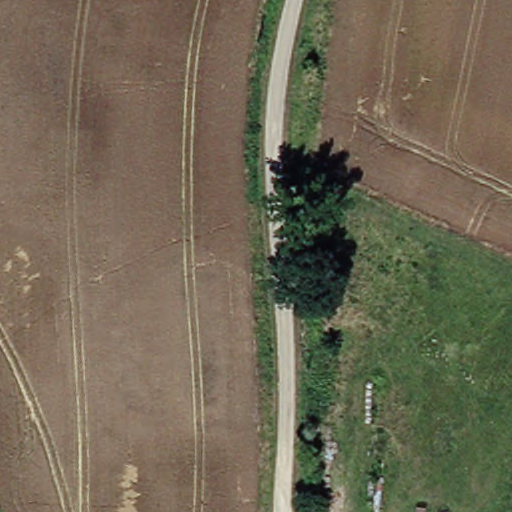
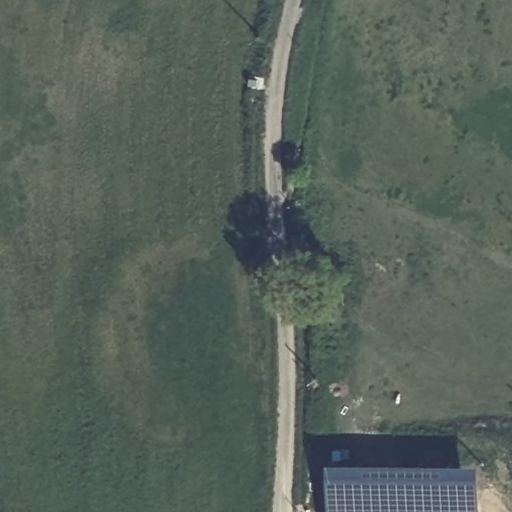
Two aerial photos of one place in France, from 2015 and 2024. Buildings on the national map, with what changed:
new [(485,463),(485,512),(334,512),(333,462),(485,463)]

